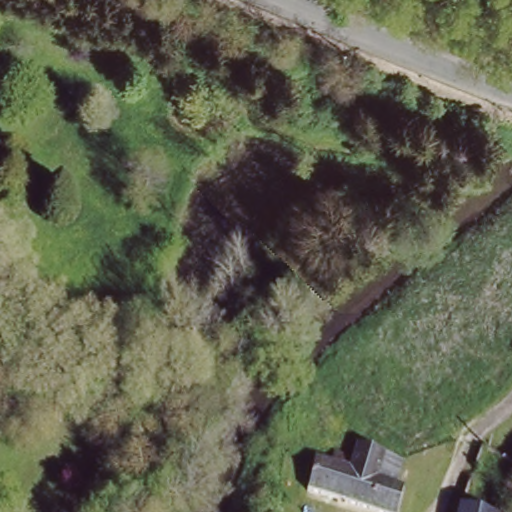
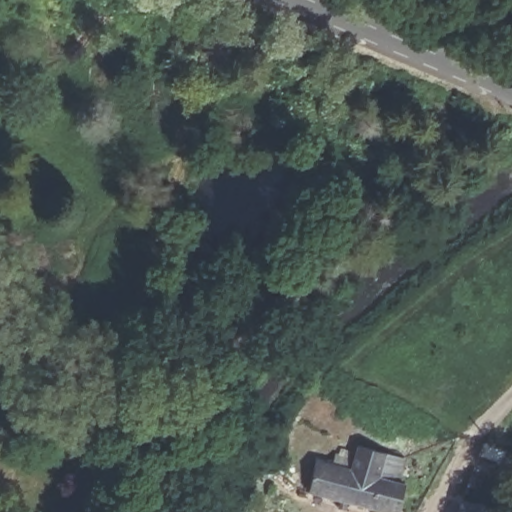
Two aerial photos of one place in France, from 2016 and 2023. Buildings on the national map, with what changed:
unchanged [(403,455),(396,481),(404,483),(397,512),(389,512),(309,490),(316,457),(319,445),(335,450),(355,455),(358,443),(403,455)]
unchanged [(500,498),(499,502),(497,512),(456,512),(460,495),(462,488),(500,498)]

